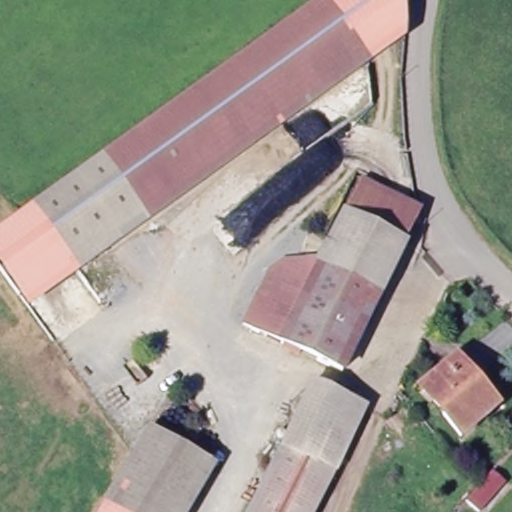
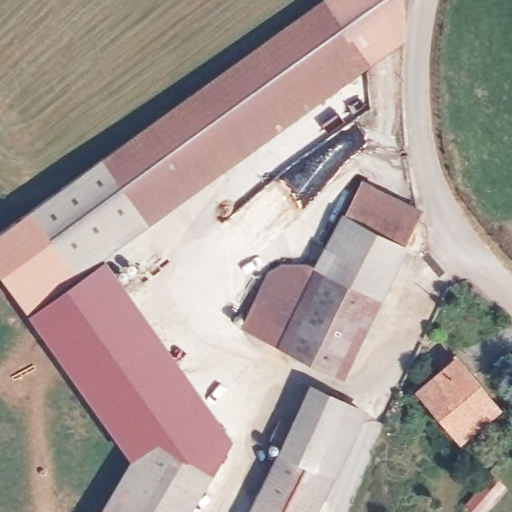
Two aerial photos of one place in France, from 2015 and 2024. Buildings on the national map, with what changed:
unchanged [(26,314),(0,277),(0,230),(320,0),(399,0),(400,48),(26,314)]
unchanged [(410,247),(354,217),(372,183),(422,207),(424,217),(410,247)]
unchanged [(354,217),(410,247),(351,372),(256,328),(270,300),(285,272),(298,267),(312,266),(330,266),(354,217)]
new [(186,456),(150,433),(132,461),(26,314),(103,259),(230,440),(211,472),(186,456)]
unchanged [(430,399),(465,372),(504,416),(465,445),(430,399)]
unchanged [(343,411),(308,470),(289,457),(322,398),(343,411)]
unchanged [(308,470),(343,411),(370,427),(322,512),(258,512),(289,457),(308,470)]
unchanged [(104,512),(100,510),(150,433),(186,456),(211,472),(205,482),(187,512),(104,512)]
unchanged [(484,512),(478,512),(465,500),(492,470),(510,487),(484,512)]
unchanged [(99,512),(100,510),(104,512),(99,512)]

